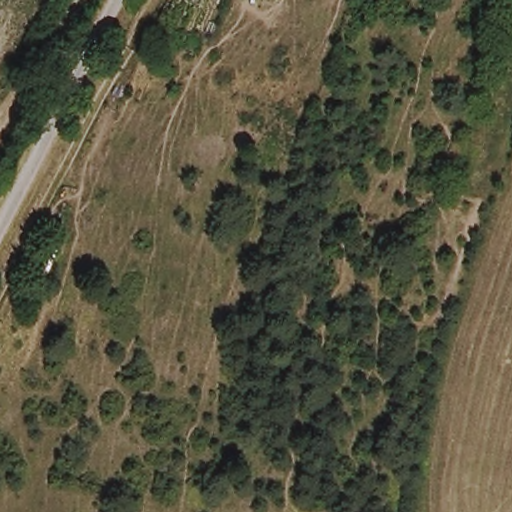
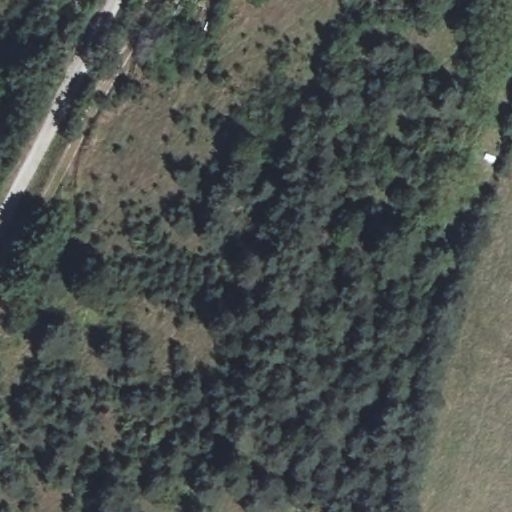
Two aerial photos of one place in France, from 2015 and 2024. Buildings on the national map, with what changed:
[]

